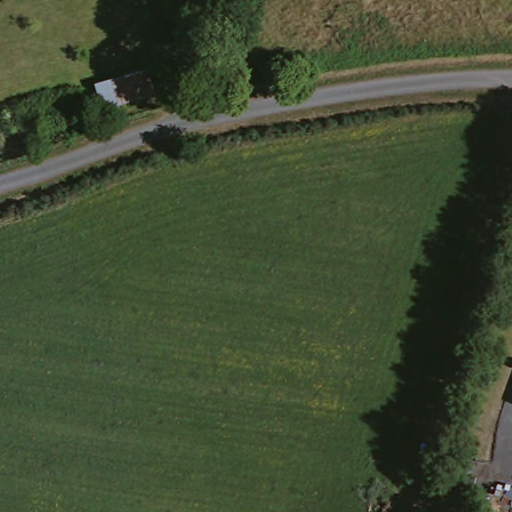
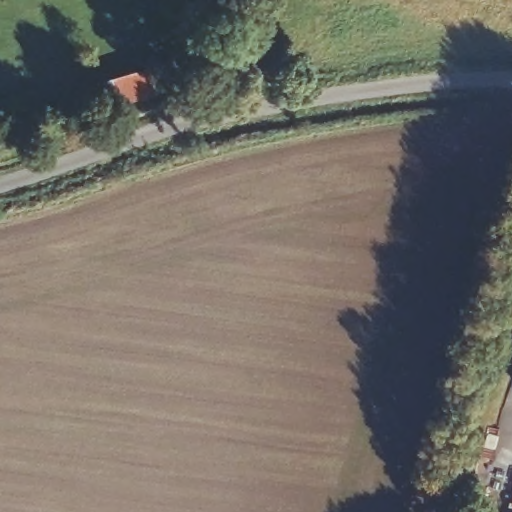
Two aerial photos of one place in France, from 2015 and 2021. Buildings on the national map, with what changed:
unchanged [(93,88),(143,70),(153,96),(102,113),(93,88)]
unchanged [(447,482),(458,453),(483,463),(471,492),(447,482)]

